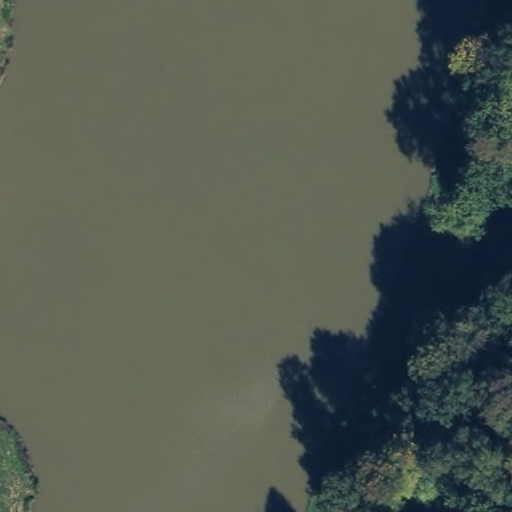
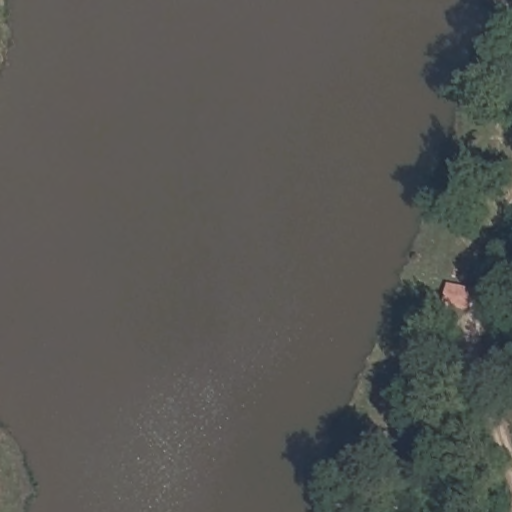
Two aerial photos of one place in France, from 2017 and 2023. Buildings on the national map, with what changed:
unchanged [(435,297),(450,302),(443,327),(426,322),(435,297)]

